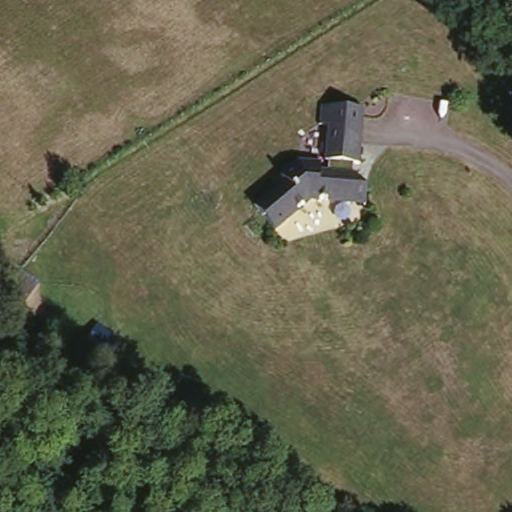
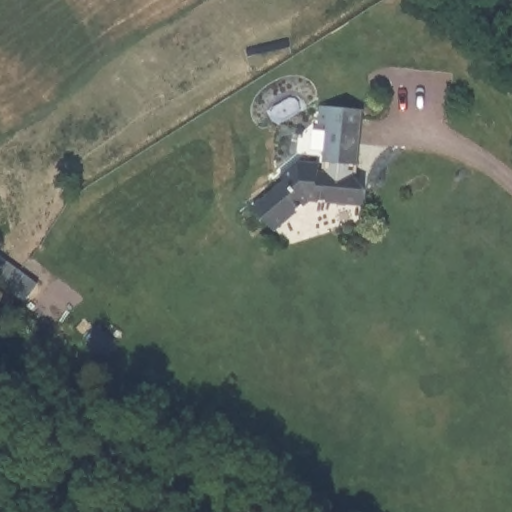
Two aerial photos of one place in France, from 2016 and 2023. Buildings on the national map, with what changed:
unchanged [(364,107),(358,203),(313,202),(274,234),(252,210),(298,161),(319,162),(321,101),(364,107)]

